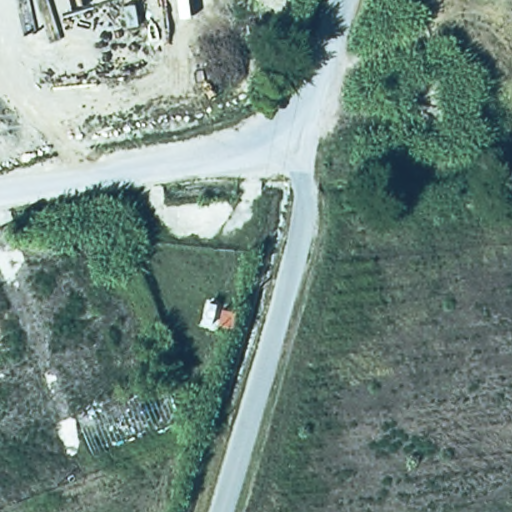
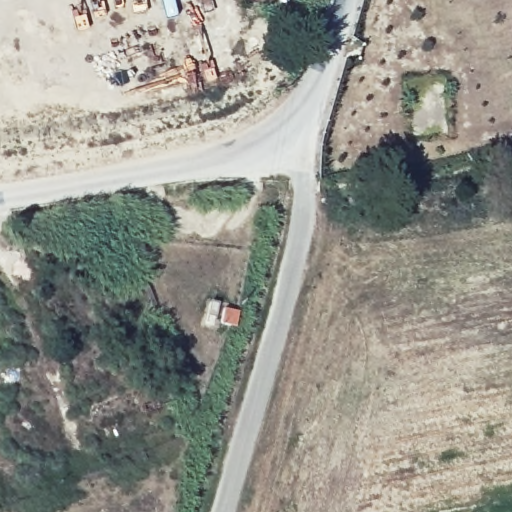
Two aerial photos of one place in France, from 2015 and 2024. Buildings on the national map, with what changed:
unchanged [(237,306),(235,328),(211,325),(216,302),(237,306)]

